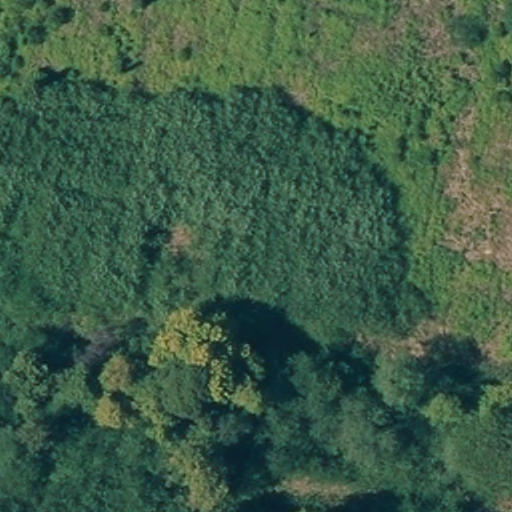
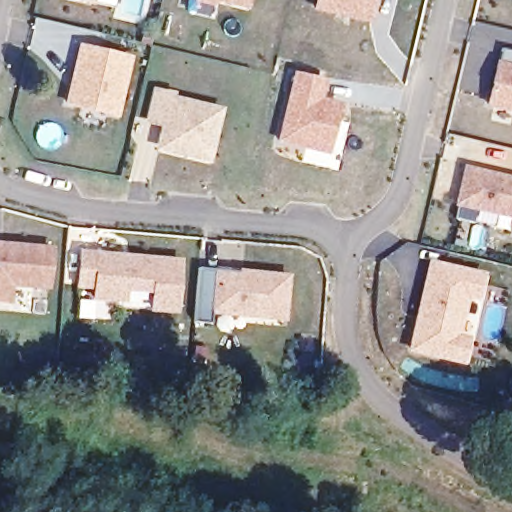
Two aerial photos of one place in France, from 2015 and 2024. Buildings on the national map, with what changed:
new [(94,3),(79,0),(95,0),(94,3)]
new [(219,2),(214,7),(195,2),(195,0),(249,0),(246,8),(219,2)]
new [(312,10),(315,0),(376,0),(370,24),(312,10)]
new [(63,106),(78,43),(132,56),(118,117),(63,106)]
new [(500,61),(502,49),(512,52),(512,113),(486,107),(497,60),(500,61)]
new [(293,70),(329,80),(324,98),(346,103),(333,158),(276,143),(293,70)]
new [(163,125),(147,121),(155,91),(171,95),(171,98),(219,110),(207,161),(161,150),(157,149),(159,142),(163,125)]
new [(512,219),(455,206),(463,166),(512,178),(512,219)]
new [(53,246),(49,289),(13,287),(11,303),(0,303),(0,242),(53,246)]
new [(150,311),(151,291),(126,289),(124,302),(91,298),(91,288),(75,287),(79,248),(182,259),(178,313),(150,311)]
new [(409,350),(430,263),(480,275),(466,339),(461,362),(409,350)]
new [(197,268),(225,271),(234,272),(286,277),(282,319),(209,312),(209,325),(192,323),(194,303),(197,268)]

